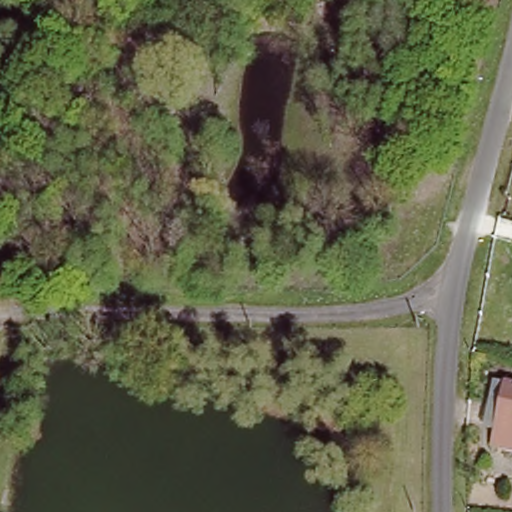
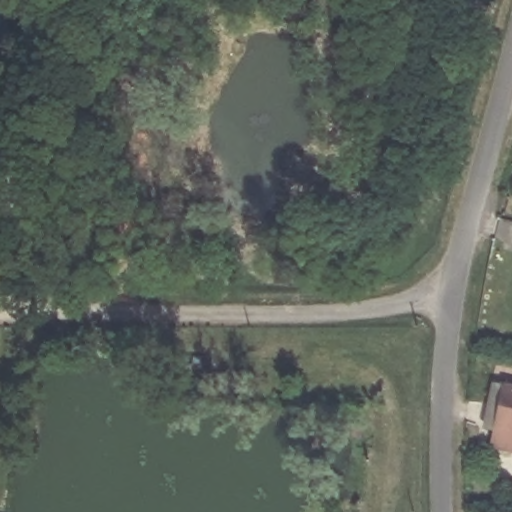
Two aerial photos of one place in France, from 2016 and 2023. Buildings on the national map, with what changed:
unchanged [(512,396),(512,445),(486,440),(493,407),(503,409),(506,394),(512,396)]

